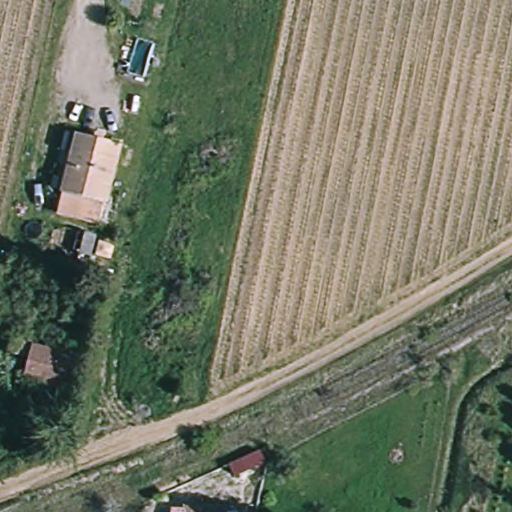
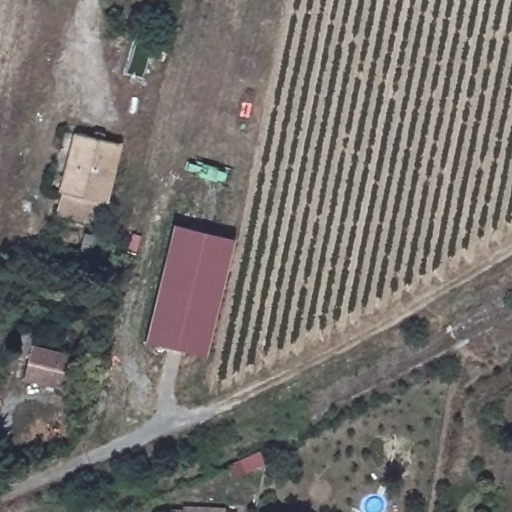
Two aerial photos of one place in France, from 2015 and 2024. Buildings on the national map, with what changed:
unchanged [(98,221),(58,210),(78,131),(118,143),(98,221)]
new [(234,240),(206,357),(144,342),(174,225),(234,240)]
unchanged [(90,257),(78,254),(84,230),(96,233),(90,257)]
unchanged [(64,389),(25,381),(33,352),(70,360),(64,389)]
new [(170,508),(183,508),(183,505),(225,508),(224,512),(169,512),(170,508)]

